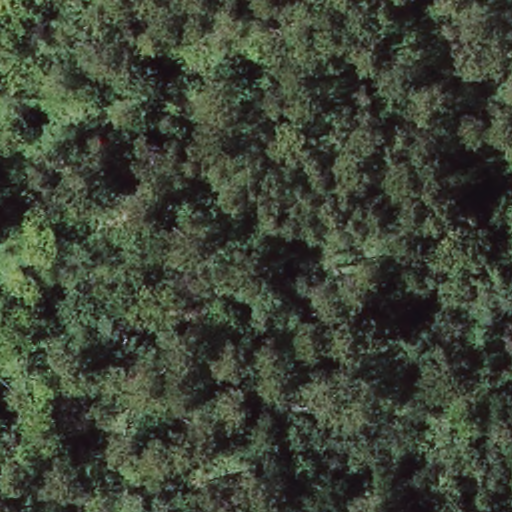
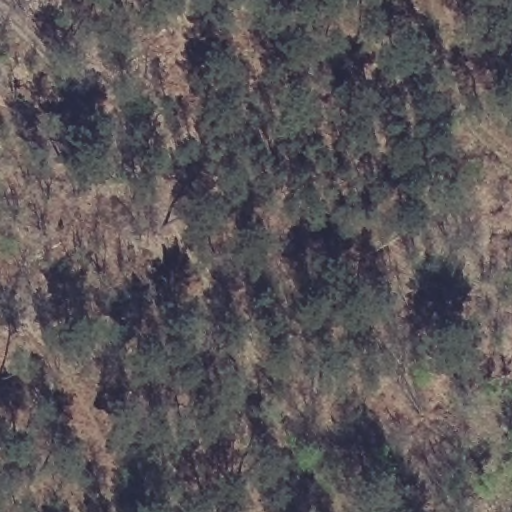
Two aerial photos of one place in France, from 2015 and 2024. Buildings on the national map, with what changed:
[]

